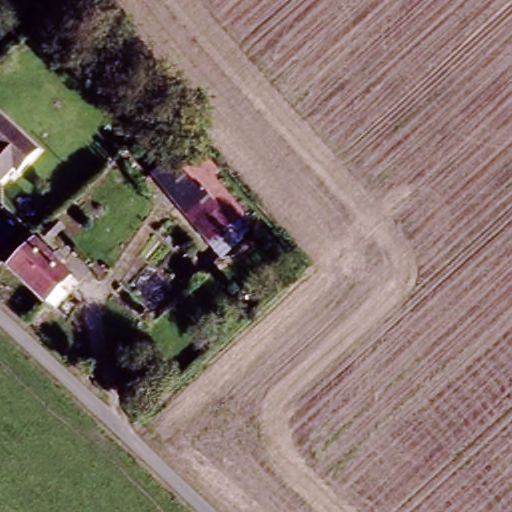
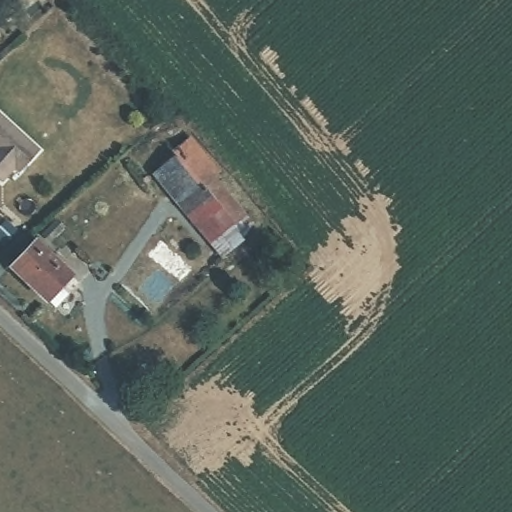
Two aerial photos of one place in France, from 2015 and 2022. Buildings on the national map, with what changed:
unchanged [(51,165),(30,188),(19,178),(6,192),(0,186),(0,116),(51,165)]
unchanged [(205,250),(168,203),(131,145),(164,118),(254,215),(205,250)]
unchanged [(11,257),(34,233),(70,267),(45,292),(11,257)]
unchanged [(70,287),(55,301),(50,294),(62,280),(70,287)]

